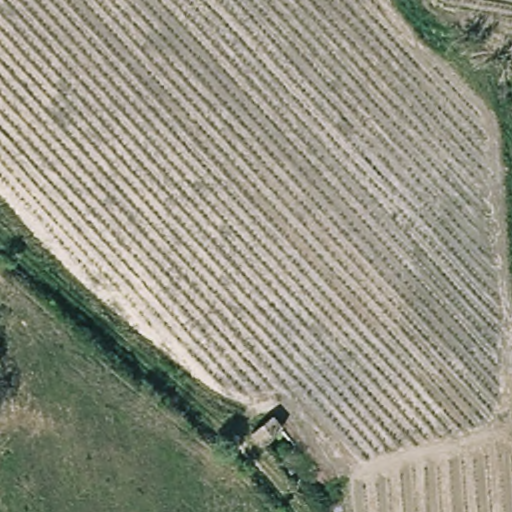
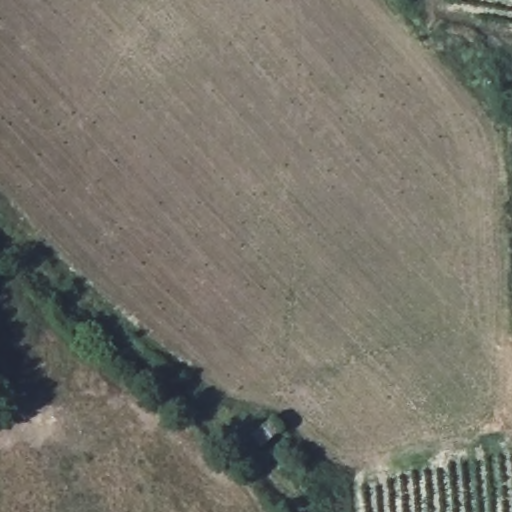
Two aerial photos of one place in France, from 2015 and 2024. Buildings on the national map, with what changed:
unchanged [(251,436),(273,418),(282,433),(265,448),(251,436)]

